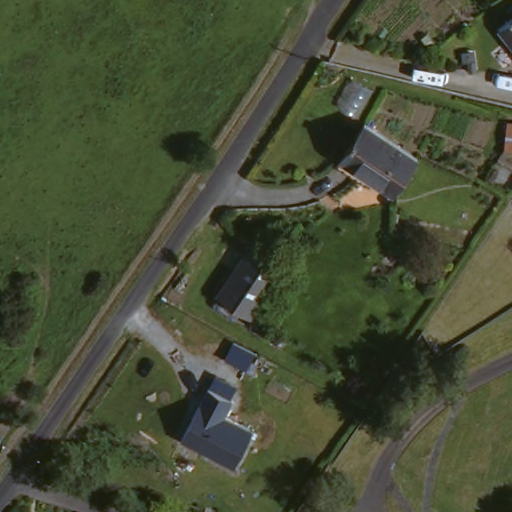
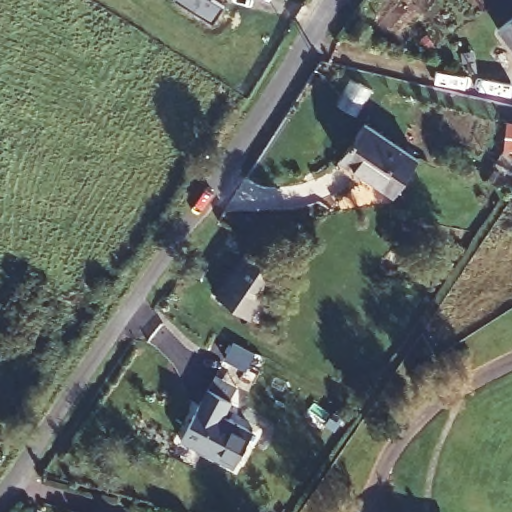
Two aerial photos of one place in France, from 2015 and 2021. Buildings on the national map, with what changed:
new [(216,0),(227,7),(214,21),(177,0),(216,0)]
unchanged [(512,19),(512,50),(497,32),(512,19)]
unchanged [(507,121),(512,121),(512,150),(504,150),(507,121)]
unchanged [(391,195),(342,156),(366,126),(415,162),(391,195)]
unchanged [(252,319),(217,295),(253,244),(288,267),(252,319)]
unchanged [(205,391),(212,377),(230,388),(224,401),(227,403),(219,418),(247,434),(228,469),(175,440),(204,390),(205,391)]

